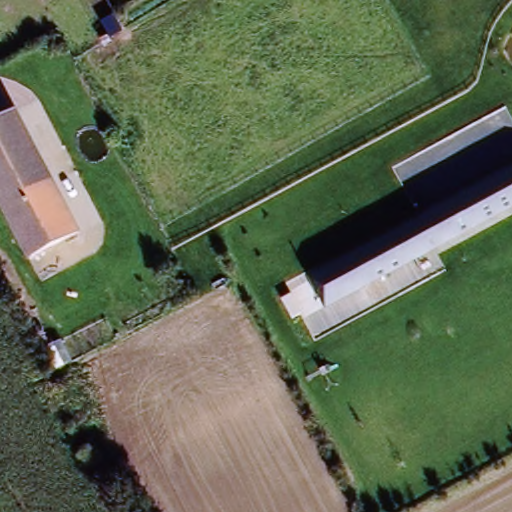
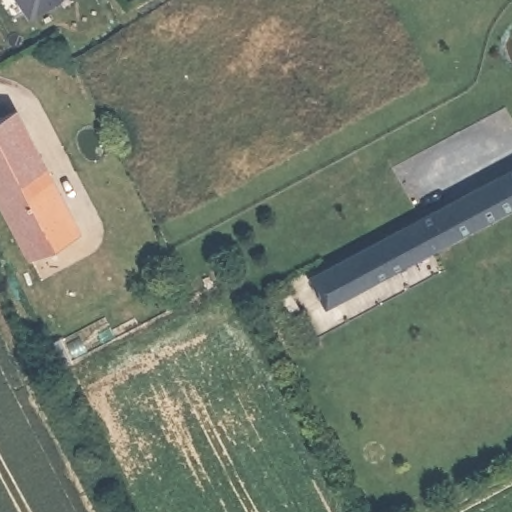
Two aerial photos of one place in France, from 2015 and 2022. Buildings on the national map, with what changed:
new [(15,0),(59,0),(29,20),(15,0)]
unchanged [(16,116),(79,232),(38,257),(0,189),(0,125),(16,116)]
unchanged [(311,278),(512,164),(512,206),(328,310),(311,278)]

